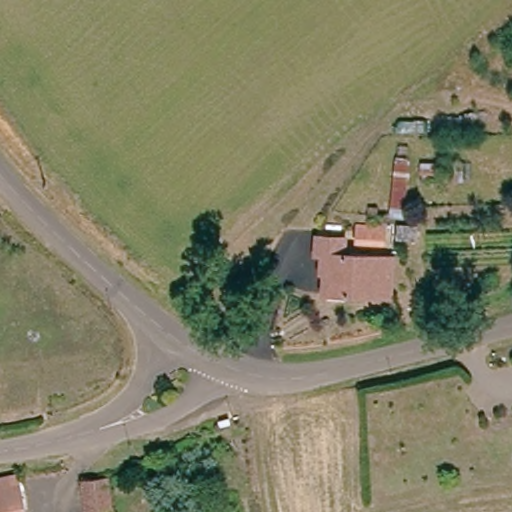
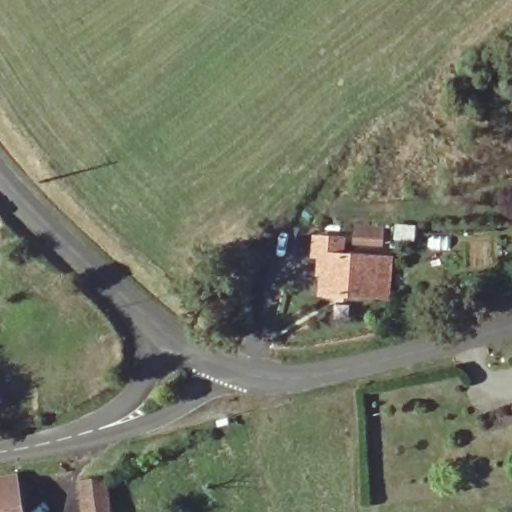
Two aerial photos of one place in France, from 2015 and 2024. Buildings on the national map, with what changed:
unchanged [(398,260),(397,297),(374,296),(320,295),(322,260),(312,260),(312,242),(338,242),(338,261),(375,261),(375,260),(398,260)]
unchanged [(16,481),(22,512),(0,512),(0,484),(16,481)]
unchanged [(83,493),(110,488),(115,512),(87,512),(83,493)]

